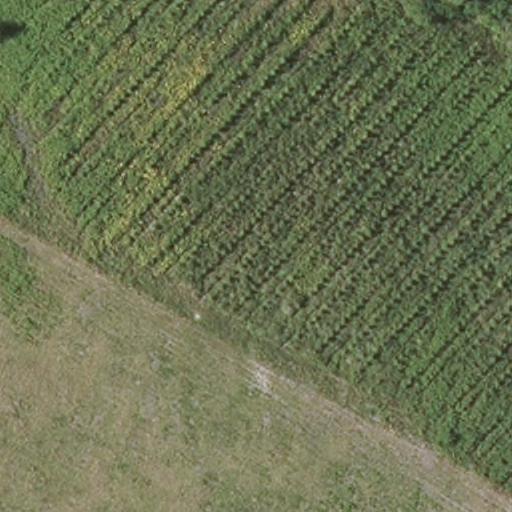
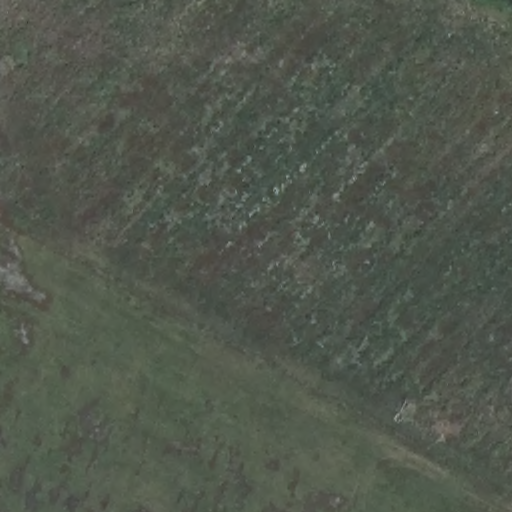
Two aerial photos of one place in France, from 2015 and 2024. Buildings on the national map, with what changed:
[]

